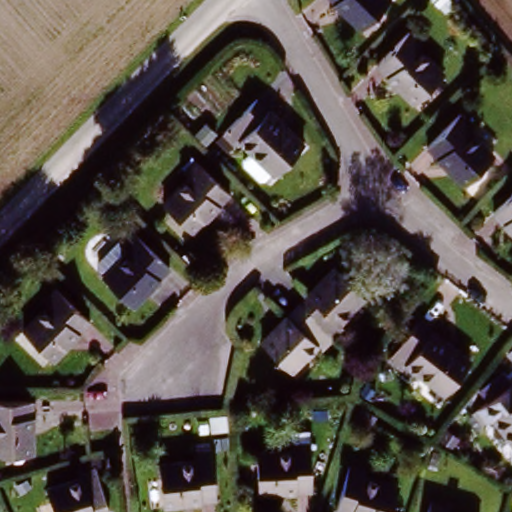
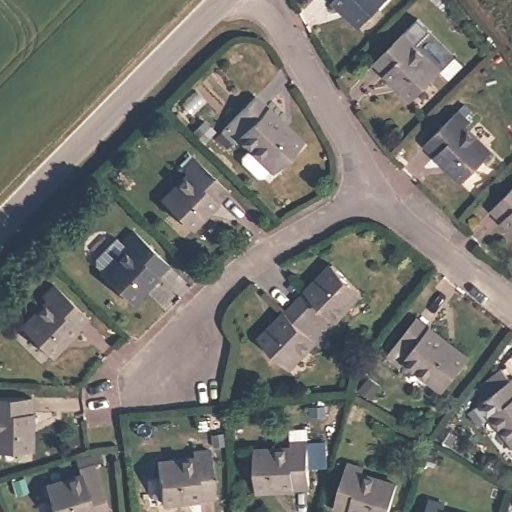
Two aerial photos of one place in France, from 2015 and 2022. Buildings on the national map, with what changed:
unchanged [(385,4),(362,27),(337,0),(382,0),(385,4)]
unchanged [(415,47),(410,53),(433,79),(411,100),(377,65),(405,38),(415,47)]
unchanged [(257,108),(297,148),(275,171),(245,140),(239,145),(229,136),(257,108)]
unchanged [(459,182),(425,148),(456,118),(467,129),(460,136),(482,159),(459,182)]
unchanged [(192,229),(168,205),(194,179),(189,174),(197,166),(227,194),(192,229)]
unchanged [(496,209),(512,194),(512,225),(496,209)]
unchanged [(125,243),(133,252),(142,241),(170,271),(137,306),(110,280),(112,278),(104,272),(105,264),(125,243)]
unchanged [(355,295),(330,320),(336,326),(326,336),(293,303),(327,269),(355,295)]
unchanged [(30,326),(55,302),(50,298),(59,289),(91,320),(56,353),(30,326)]
unchanged [(315,346),(309,340),(287,362),(261,335),(293,303),(326,336),(315,346)]
unchanged [(442,383),(412,357),(406,364),(391,351),(419,318),(465,357),(442,383)]
unchanged [(497,414),(491,419),(480,405),(512,382),(512,434),(497,414)]
unchanged [(0,398),(30,396),(33,446),(0,448),(0,398)]
unchanged [(263,451),(296,450),(296,443),(308,443),(310,485),(264,487),(263,451)]
unchanged [(200,461),(200,452),(216,450),(218,491),(172,496),(169,463),(200,461)]
unchanged [(342,512),(335,510),(348,472),(359,476),(357,481),(392,492),(385,512),(342,512)]
unchanged [(108,512),(58,512),(52,496),(86,484),(84,478),(95,474),(108,512)]
unchanged [(440,511),(440,512),(428,512),(430,508),(440,511)]

